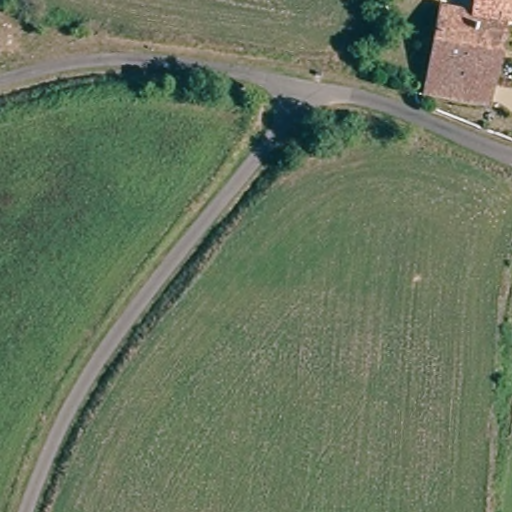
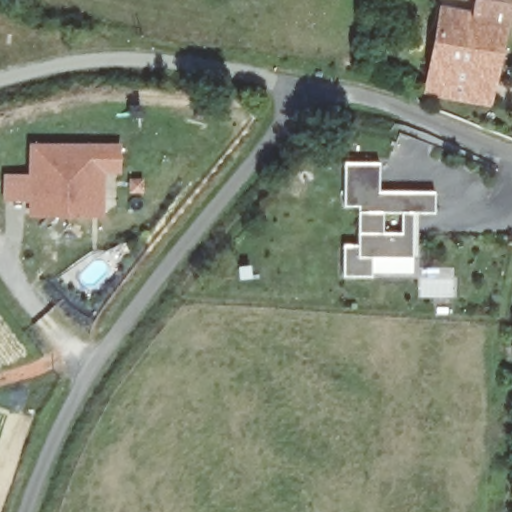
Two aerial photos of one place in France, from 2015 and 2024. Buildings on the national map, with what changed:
unchanged [(488,105),(425,94),(441,7),(470,11),(471,0),(512,0),(512,22),(506,21),(488,105)]
new [(121,145),(121,175),(105,175),(105,219),(27,219),(29,201),(5,201),(5,176),(30,176),(30,144),(121,145)]
new [(347,205),(347,165),(379,165),(380,193),(435,194),(435,214),(415,214),(415,256),(373,257),(373,278),(346,277),(346,248),(362,248),(361,205),(347,205)]

